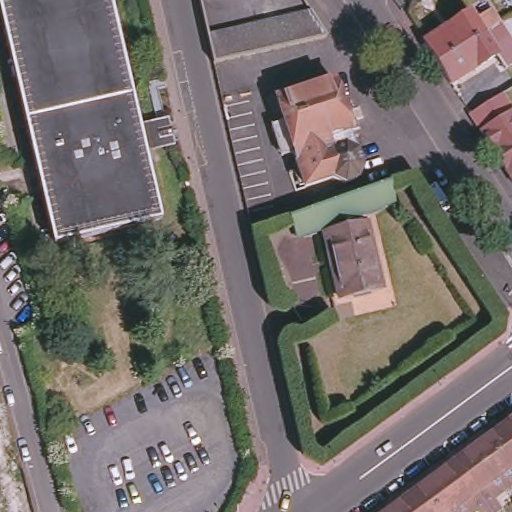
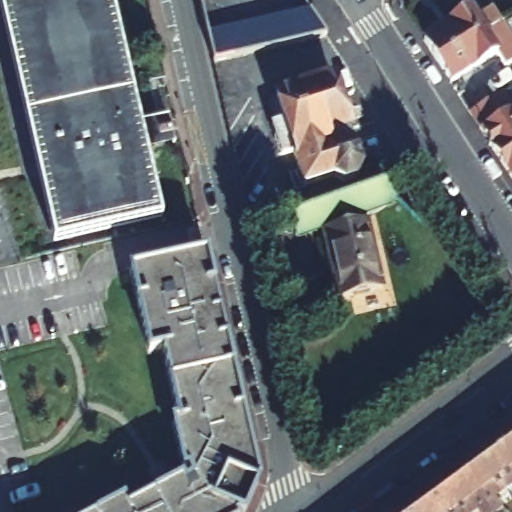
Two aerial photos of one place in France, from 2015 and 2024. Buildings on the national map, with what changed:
unchanged [(0,8),(0,0),(112,0),(163,216),(55,242),(0,8)]
unchanged [(326,32),(211,56),(206,29),(309,7),(326,32)]
unchanged [(414,42),(461,12),(469,24),(488,12),(493,19),(427,62),(414,42)]
unchanged [(494,21),(499,28),(479,41),(488,53),(441,84),(427,62),(493,19),(494,21)]
unchanged [(341,97),(351,93),(359,121),(349,125),(361,163),(356,175),(344,178),(331,171),(303,179),(293,145),(279,149),(271,118),(283,114),(275,90),(332,71),(341,97)]
unchanged [(476,110),(508,89),(512,95),(512,135),(498,144),(476,110)]
unchanged [(498,144),(512,135),(512,167),(498,144)]
unchanged [(397,194),(379,203),(367,206),(387,280),(344,291),(324,223),(296,232),(287,208),(316,198),(388,173),(397,194)]
new [(245,512),(94,512),(123,496),(129,506),(183,476),(171,420),(177,419),(163,351),(148,354),(128,270),(207,253),(259,482),(245,512)]
unchanged [(498,424),(512,413),(512,444),(498,424)]
unchanged [(474,442),(498,424),(512,444),(512,484),(508,488),(474,442)]
unchanged [(501,508),(495,512),(492,512),(452,458),(474,442),(508,488),(494,497),(501,508)]
unchanged [(475,512),(457,512),(429,475),(452,458),(492,512),(477,512),(476,511),(475,512)]
unchanged [(429,475),(457,512),(420,512),(405,492),(429,475)]
unchanged [(405,492),(420,512),(384,512),(382,509),(405,492)]
unchanged [(384,512),(378,512),(382,509),(384,512)]

